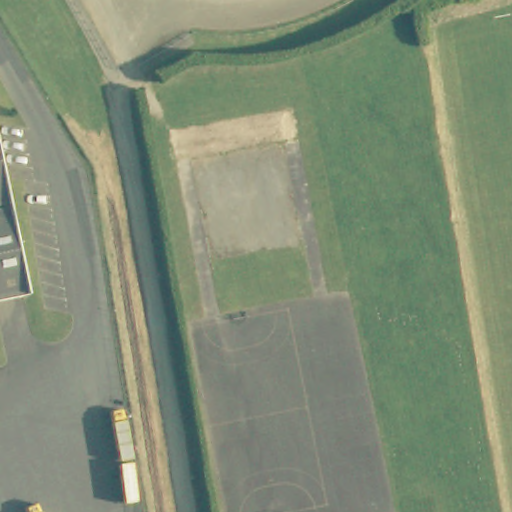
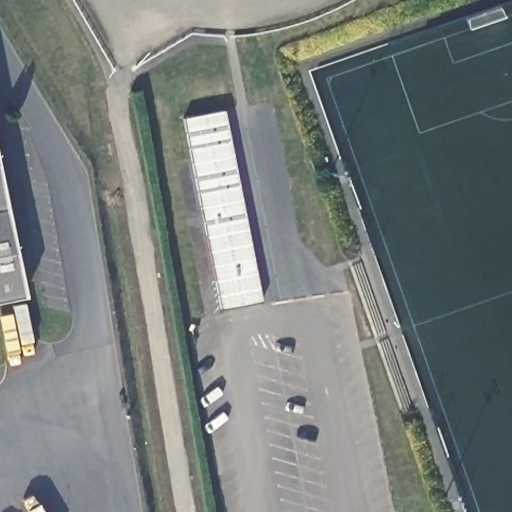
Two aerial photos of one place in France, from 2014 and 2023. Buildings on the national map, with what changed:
new [(221,309),(184,118),(225,110),(262,301),(221,309)]
unchanged [(21,290),(0,295),(0,179),(21,290)]

